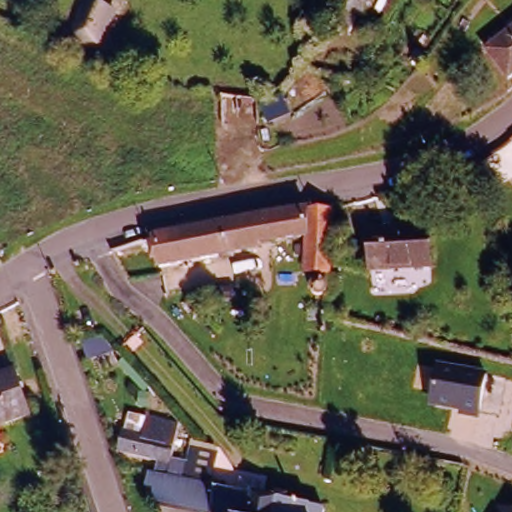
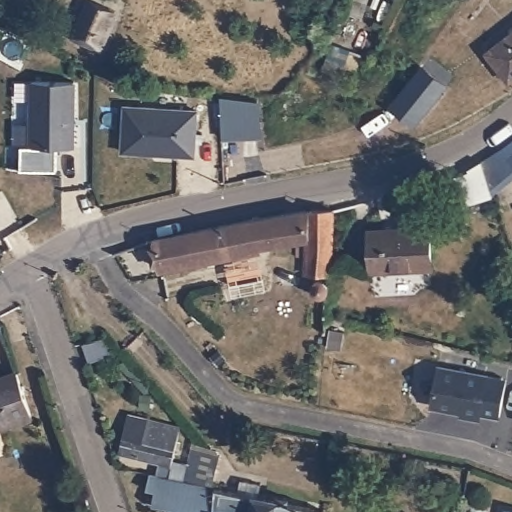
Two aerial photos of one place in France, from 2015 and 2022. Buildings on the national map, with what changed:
unchanged [(90,49),(67,39),(83,0),(105,12),(90,49)]
unchanged [(488,47),(512,27),(512,65),(507,70),(488,47)]
demolished [(332,78),(332,81),(305,82),(307,68),(332,68),(332,78)]
new [(444,90),(417,119),(395,101),(421,70),(444,90)]
new [(75,83),(73,148),(31,147),(32,82),(75,83)]
new [(258,103),(262,137),(224,139),(221,99),(258,103)]
new [(197,111),(194,156),(122,152),(125,107),(197,111)]
new [(485,190),(475,167),(502,150),(512,142),(512,179),(490,196),(485,190)]
unchanged [(327,271),(327,273),(310,273),(313,242),(267,249),(267,254),(163,268),(158,235),(230,224),(308,213),(322,210),(337,206),(327,271)]
unchanged [(433,267),(373,272),(367,230),(425,223),(433,267)]
unchanged [(304,282),(305,282),(305,281),(305,280),(305,279),(305,278),(306,278),(307,278),(307,277),(307,276),(308,276),(310,275),(311,275),(312,275),(313,275),(314,275),(315,275),(315,276),(316,276),(317,276),(317,277),(318,277),(318,278),(318,279),(319,279),(319,280),(320,280),(320,281),(320,282),(320,283),(320,284),(320,285),(320,286),(319,287),(318,288),(318,289),(317,289),(317,290),(316,290),(315,290),(315,291),(314,291),(313,291),(312,291),(311,291),(310,291),(310,290),(309,290),(308,290),(308,289),(307,289),(307,288),(306,288),(306,287),(305,287),(305,286),(305,285),(305,284),(304,284),(304,283),(304,282)]
demolished [(299,327),(300,326),(300,325),(300,324),(300,323),(300,322),(300,321),(302,308),(302,306),(322,310),(319,333),(299,330),(299,327)]
unchanged [(462,420),(462,414),(432,409),(438,368),(488,376),(480,424),(462,420)]
unchanged [(26,418),(0,427),(0,383),(12,379),(26,418)]
unchanged [(157,460),(118,453),(124,414),(175,424),(169,461),(179,463),(190,465),(187,483),(165,479),(153,477),(157,460)]
unchanged [(212,447),(210,453),(221,455),(215,489),(187,483),(190,465),(191,456),(193,443),(198,444),(212,447)]
unchanged [(188,512),(152,505),(153,494),(145,492),(148,476),(153,477),(165,479),(187,483),(215,489),(220,490),(215,512),(188,512)]
unchanged [(325,512),(215,512),(220,490),(325,511),(325,512)]
unchanged [(499,512),(500,511),(510,512),(499,512)]

